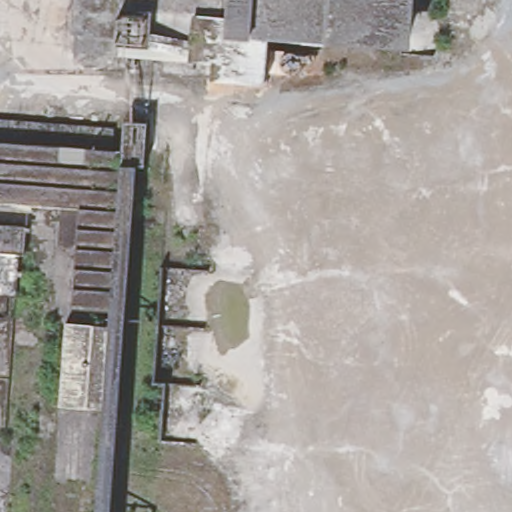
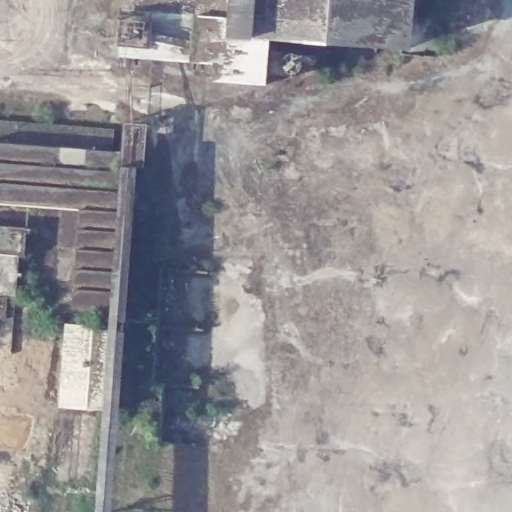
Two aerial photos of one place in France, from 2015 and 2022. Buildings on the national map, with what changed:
unchanged [(131,57),(132,37),(86,34),(89,0),(264,0),(261,39),(311,42),(307,82),(258,79),(232,77),(233,65),(131,57)]
unchanged [(311,42),(261,39),(264,0),(375,0),(373,47),(311,42)]
unchanged [(373,47),(375,0),(415,0),(411,50),(373,47)]
unchanged [(84,205),(0,198),(0,116),(114,125),(113,143),(140,145),(128,308),(76,305),(84,205)]
unchanged [(28,232),(26,260),(23,260),(0,258),(0,229),(28,232)]
unchanged [(23,260),(20,300),(0,298),(0,258),(23,260)]
unchanged [(126,321),(120,405),(66,401),(73,317),(126,321)]

